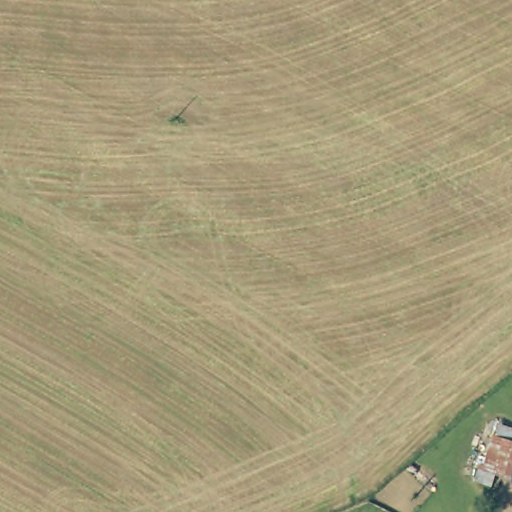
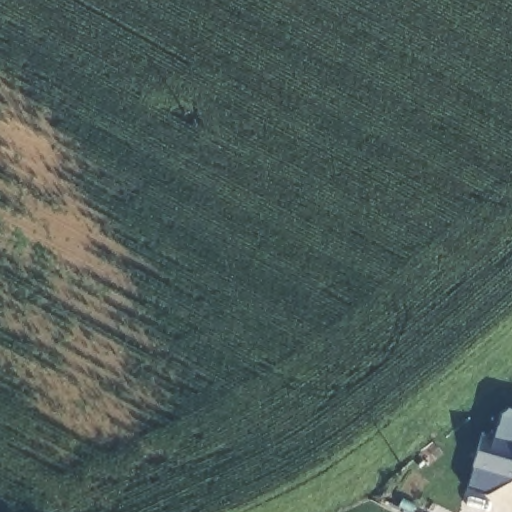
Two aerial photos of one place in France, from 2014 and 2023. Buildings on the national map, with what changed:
new [(485,495),(465,489),(479,434),(491,437),(498,414),(507,407),(512,409),(512,479),(485,495)]

